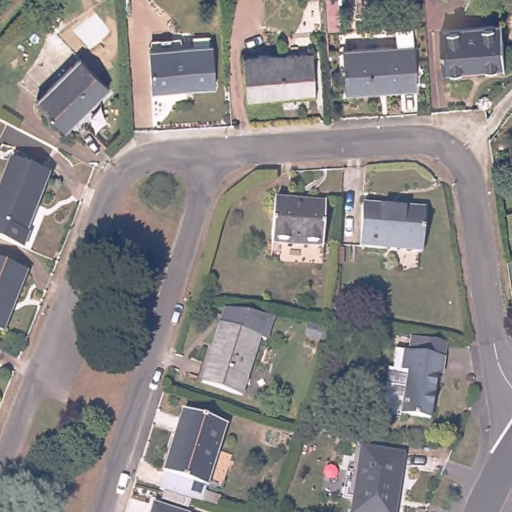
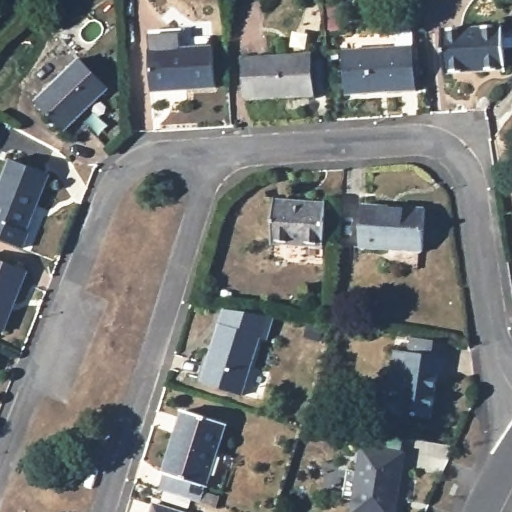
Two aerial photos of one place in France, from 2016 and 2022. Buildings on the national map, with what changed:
unchanged [(502,27),(504,70),(444,74),(442,32),(502,27)]
unchanged [(395,53),(394,37),(412,36),(416,95),(346,100),(343,57),(395,53)]
unchanged [(212,48),(214,88),(151,92),(149,52),(212,48)]
unchanged [(312,54),(314,96),(247,101),(244,58),(312,54)]
unchanged [(79,59),(107,88),(64,132),(35,103),(79,59)]
unchanged [(10,239),(0,235),(0,181),(10,155),(49,169),(26,229),(29,230),(23,244),(10,239)]
unchanged [(274,203),(325,205),(323,246),(272,244),(274,203)]
unchanged [(363,207),(425,210),(423,250),(361,248),(363,207)]
unchanged [(3,332),(0,331),(0,262),(25,272),(3,332)]
unchanged [(273,317),(265,339),(259,337),(241,397),(202,384),(224,310),(273,317)]
unchanged [(395,350),(444,358),(443,375),(437,374),(430,418),(401,414),(408,369),(404,369),(405,358),(394,356),(395,350)]
unchanged [(405,358),(404,369),(408,369),(401,414),(400,418),(381,415),(388,370),(392,370),(394,356),(405,358)]
unchanged [(164,485),(169,470),(188,406),(230,419),(211,482),(206,498),(164,485)]
unchanged [(403,454),(394,512),(350,512),(361,447),(403,454)]
unchanged [(161,512),(154,512),(154,510),(161,512)]

